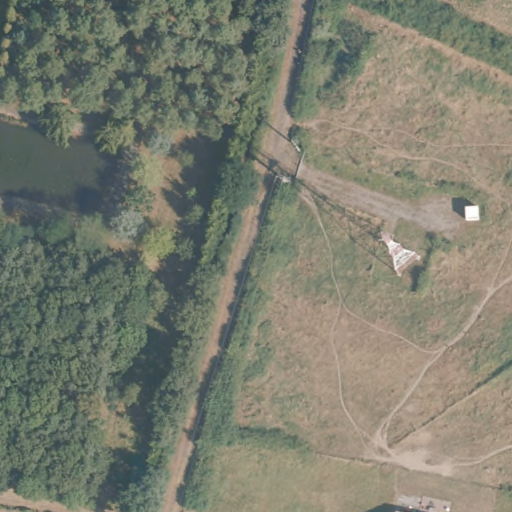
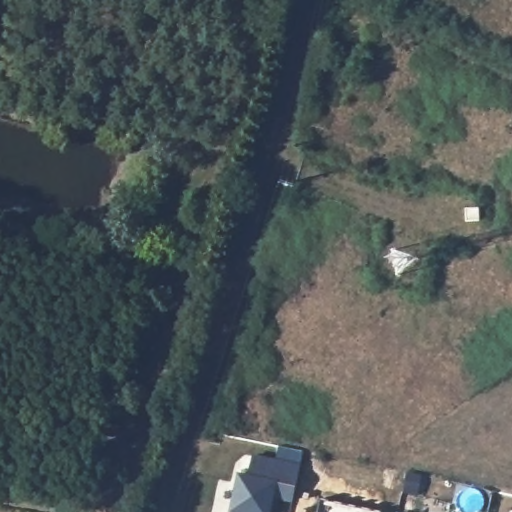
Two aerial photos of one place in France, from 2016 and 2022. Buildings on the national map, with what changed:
new [(270,512),(226,512),(236,471),(245,472),(250,453),(301,465),(291,502),(273,498),(270,512)]

